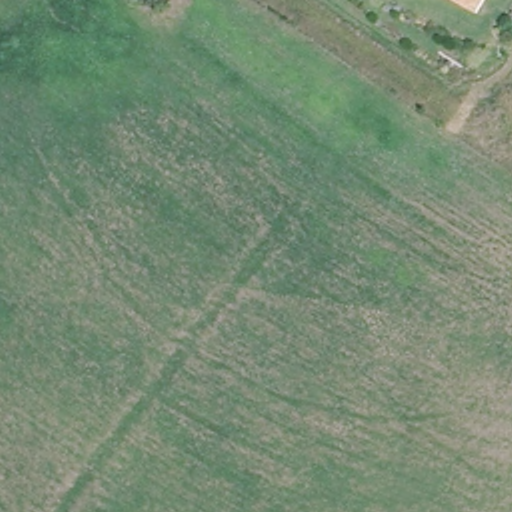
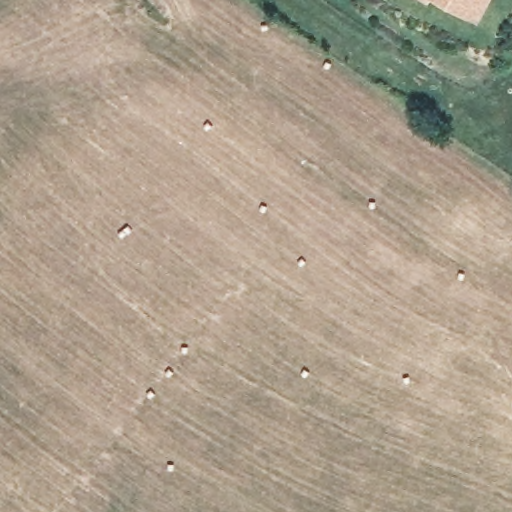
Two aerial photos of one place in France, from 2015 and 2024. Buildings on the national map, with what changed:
unchanged [(427,0),(429,0),(429,1),(427,0)]
unchanged [(478,12),(455,0),(484,0),(478,12)]

